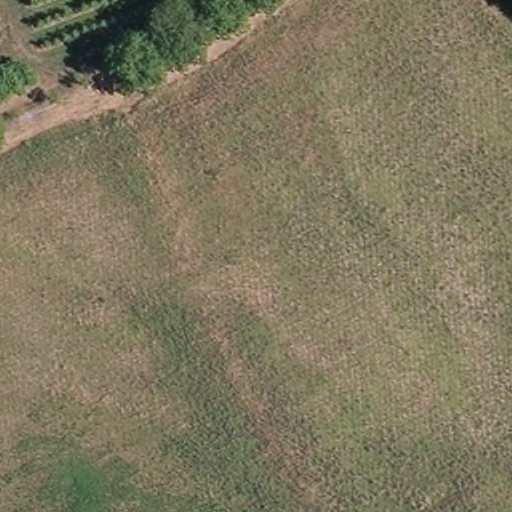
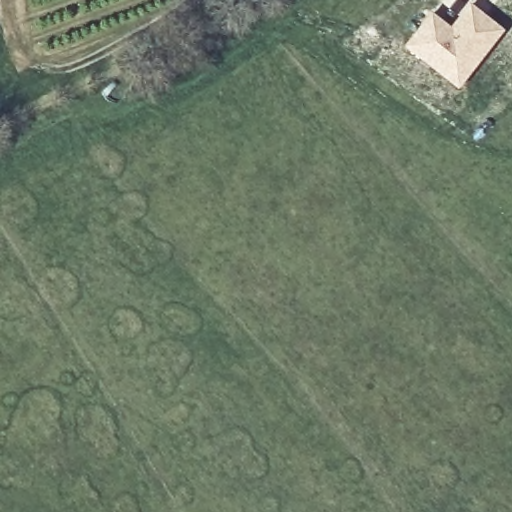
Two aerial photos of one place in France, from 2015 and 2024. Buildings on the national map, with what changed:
new [(431,11),(449,25),(470,0),(471,0),(506,29),(458,89),(402,45),(431,11)]

